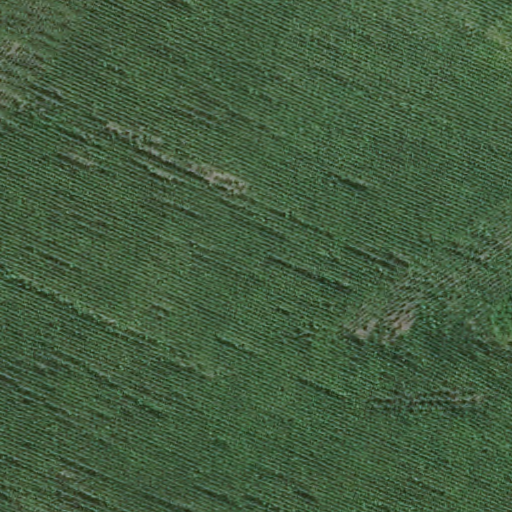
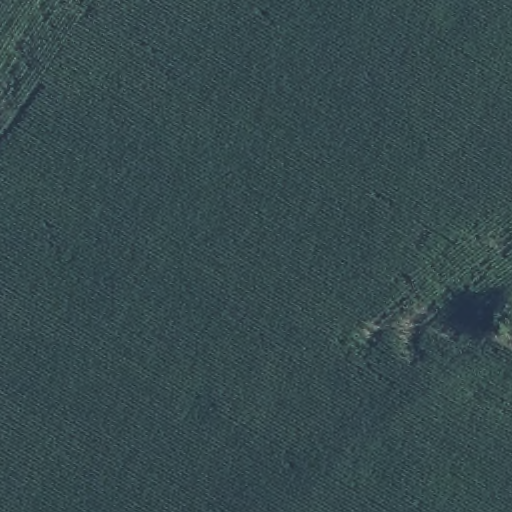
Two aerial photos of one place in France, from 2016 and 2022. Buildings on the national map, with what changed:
[]

